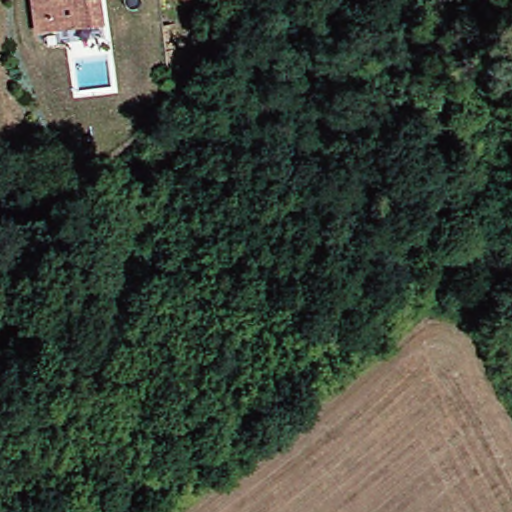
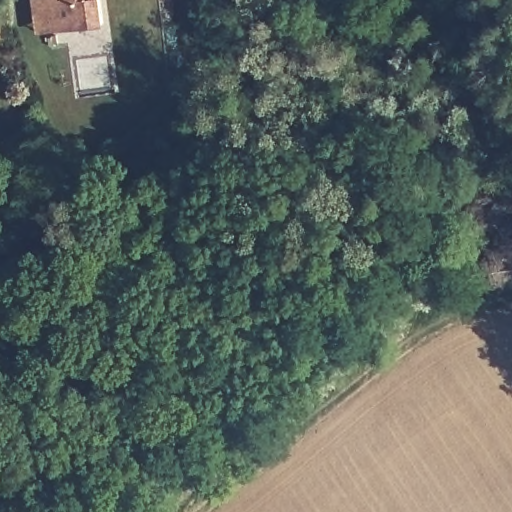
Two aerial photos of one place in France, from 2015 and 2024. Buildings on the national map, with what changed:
unchanged [(39,14),(37,0),(105,0),(108,24),(60,30),(42,32),(39,14)]

